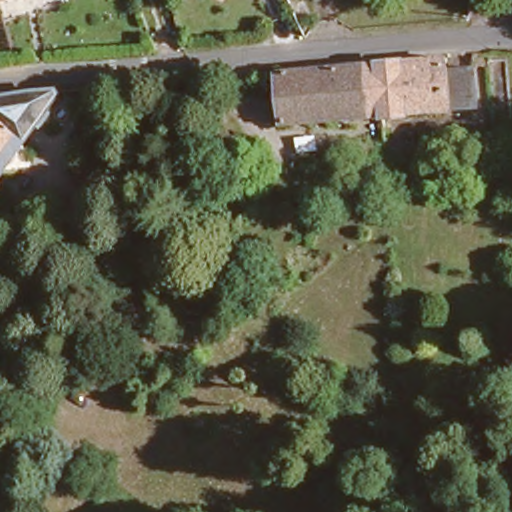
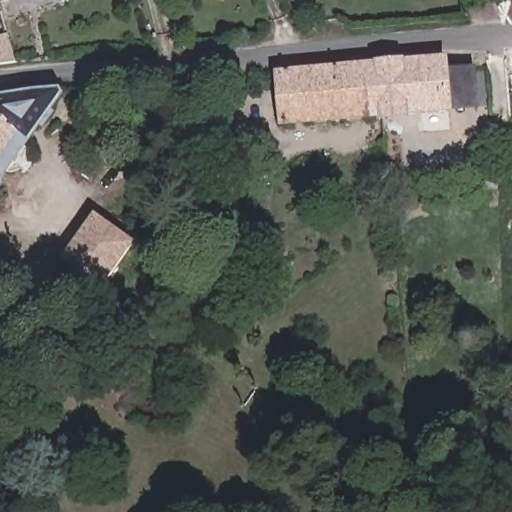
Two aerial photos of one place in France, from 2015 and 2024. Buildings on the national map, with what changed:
new [(8,34),(17,63),(0,66),(0,37),(8,34)]
unchanged [(428,62),(453,61),(458,114),(383,114),(370,114),(367,54),(428,49),(428,62)]
unchanged [(291,113),(288,60),(367,54),(370,114),(291,113)]
unchanged [(63,83),(0,176),(0,90),(63,83)]
new [(62,258),(94,212),(136,241),(105,284),(62,258)]

